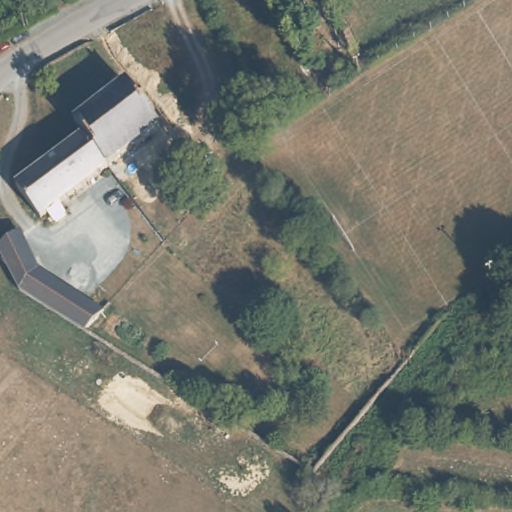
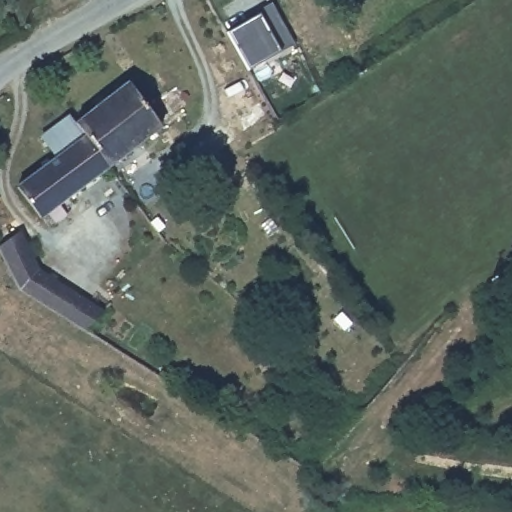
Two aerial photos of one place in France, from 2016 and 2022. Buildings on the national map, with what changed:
new [(260,13),(258,10),(273,1),(295,42),(250,68),(228,30),(260,13)]
unchanged [(45,220),(22,191),(90,138),(79,125),(130,85),(164,129),(45,220)]
unchanged [(201,164),(192,152),(206,142),(215,154),(201,164)]
unchanged [(0,250),(0,245),(23,233),(41,267),(106,311),(90,328),(86,332),(21,290),(0,250)]

